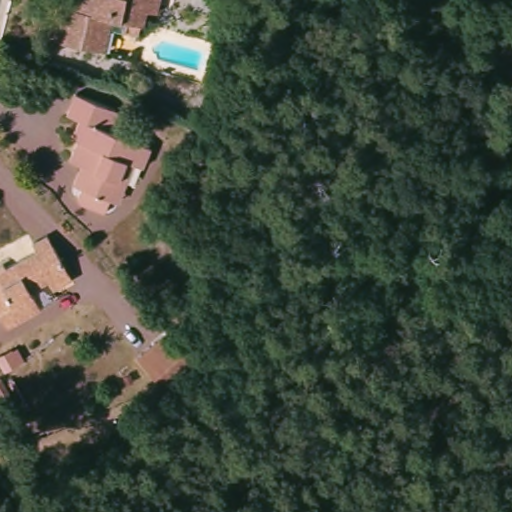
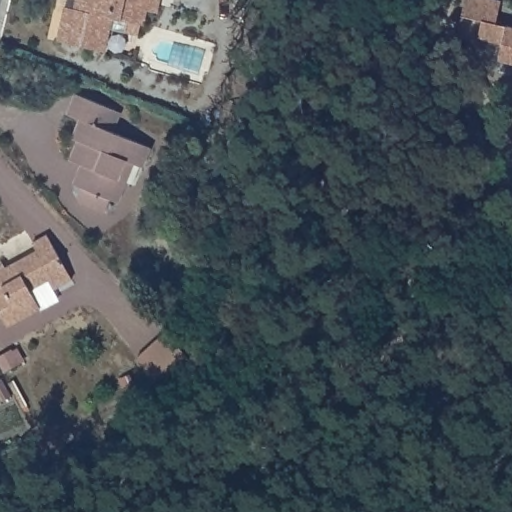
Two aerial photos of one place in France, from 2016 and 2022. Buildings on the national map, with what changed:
unchanged [(149,11),(146,26),(142,25),(139,36),(115,30),(117,19),(112,18),(104,49),(58,38),(67,5),(68,0),(161,0),(158,13),(149,11)]
new [(499,0),(501,1),(496,23),(512,26),(512,61),(500,59),(503,43),(479,38),(483,20),(463,16),(466,0),(499,0)]
unchanged [(109,197),(104,210),(76,199),(81,186),(74,184),(81,164),(68,159),(76,138),(70,136),(77,117),(65,113),(72,91),(112,106),(118,108),(112,124),(107,121),(105,126),(149,143),(141,163),(133,160),(117,200),(109,197)]
unchanged [(1,268),(32,250),(26,241),(41,233),(65,277),(47,288),(42,280),(24,291),(33,306),(2,324),(0,321),(0,266),(1,268)]
unchanged [(163,331),(198,369),(161,385),(135,357),(163,331)]

